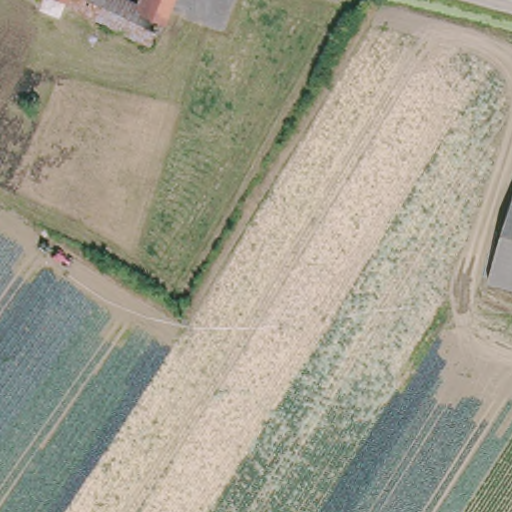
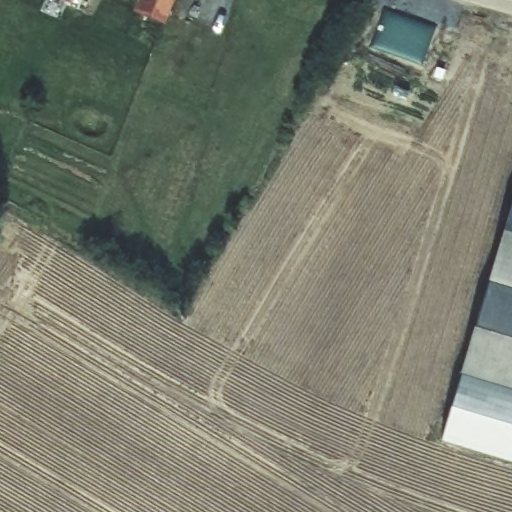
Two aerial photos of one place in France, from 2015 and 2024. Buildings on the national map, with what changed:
unchanged [(164,49),(50,5),(52,0),(145,0),(148,1),(148,0),(183,0),(164,49)]
unchanged [(512,186),(512,293),(485,286),(512,186)]
new [(460,374),(485,286),(512,293),(512,390),(460,374)]
new [(460,374),(512,390),(512,463),(440,441),(460,374)]

